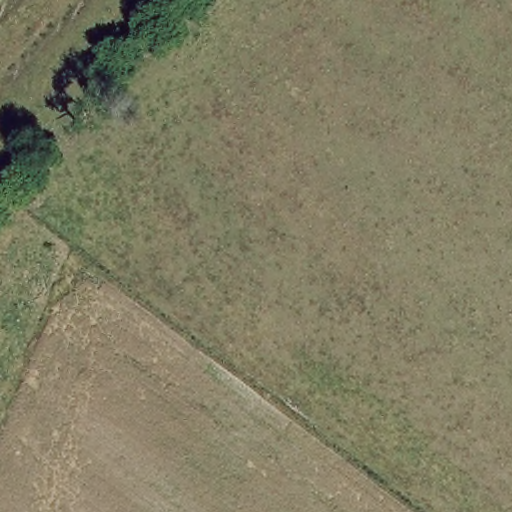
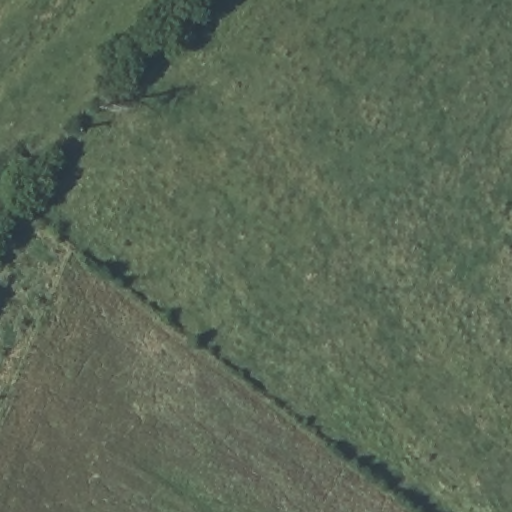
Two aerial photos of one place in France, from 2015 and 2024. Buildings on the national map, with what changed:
[]

